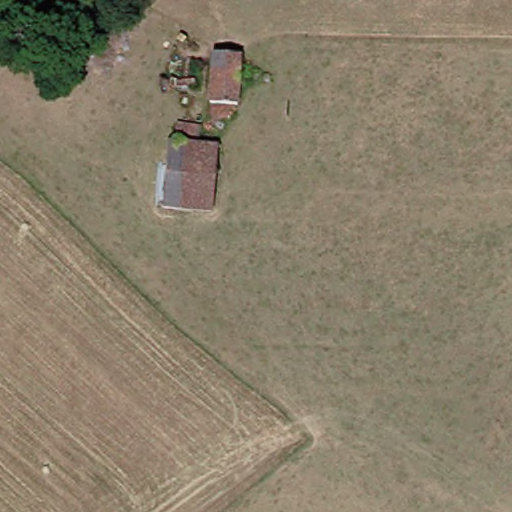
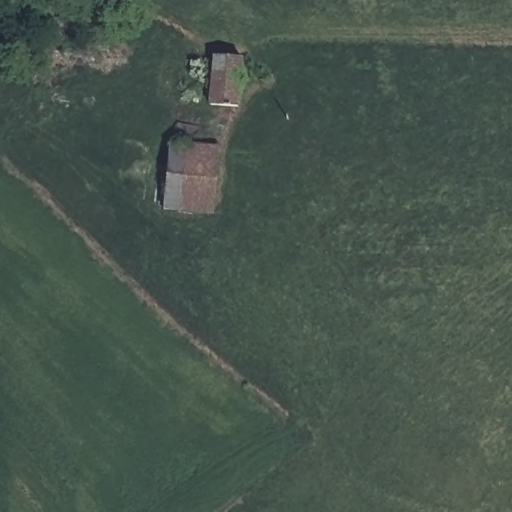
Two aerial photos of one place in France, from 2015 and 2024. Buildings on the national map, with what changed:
unchanged [(123,40),(111,28),(130,10),(142,22),(123,40)]
unchanged [(250,109),(218,110),(216,52),(248,54),(250,109)]
unchanged [(225,214),(174,215),(171,147),(221,146),(225,214)]

